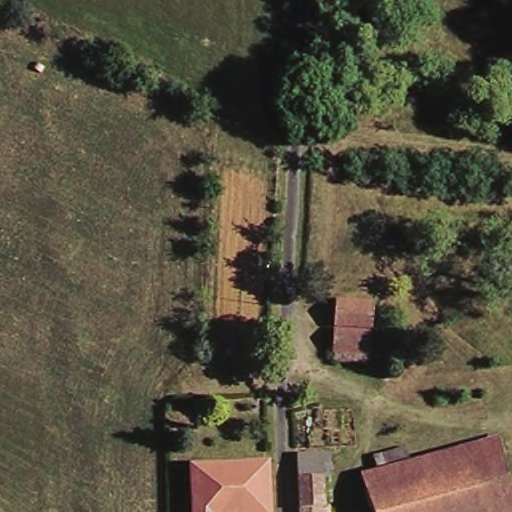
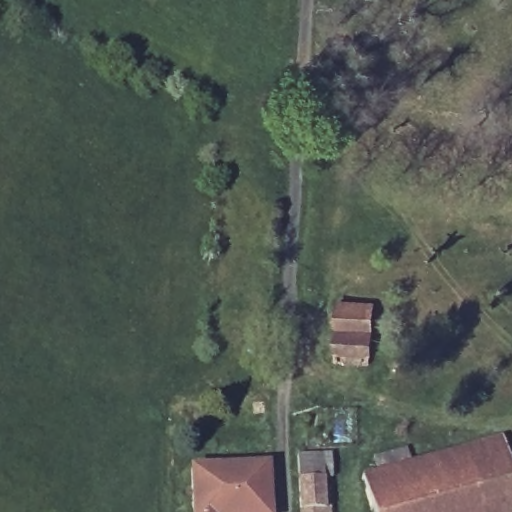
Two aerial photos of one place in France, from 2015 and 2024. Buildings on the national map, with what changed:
unchanged [(374,317),(337,316),(337,299),(377,299),(374,317)]
unchanged [(338,326),(374,327),(373,355),(337,354),(338,326)]
unchanged [(255,383),(268,383),(267,394),(255,394),(255,383)]
unchanged [(499,436),(512,479),(512,512),(485,512),(465,447),(499,436)]
unchanged [(383,473),(379,457),(410,448),(414,462),(465,447),(485,512),(377,512),(366,478),(383,473)]
unchanged [(332,512),(301,512),(299,468),(298,455),(323,454),(325,467),(326,508),(332,508),(332,512)]
unchanged [(228,467),(267,464),(270,512),(191,512),(188,470),(228,467)]

